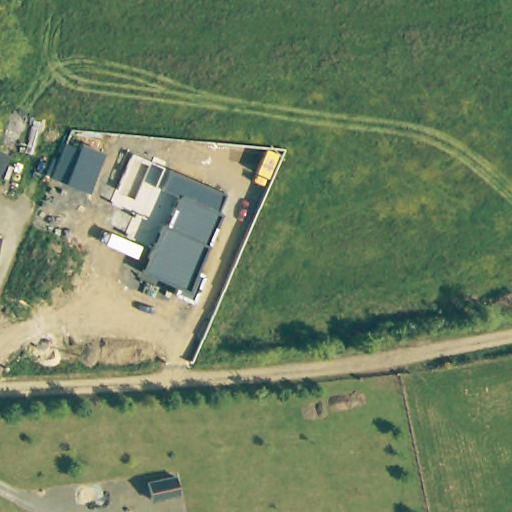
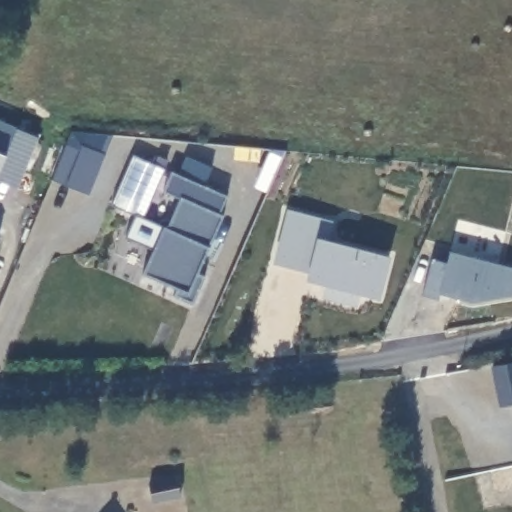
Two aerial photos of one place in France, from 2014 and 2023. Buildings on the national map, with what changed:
unchanged [(66,183),(54,177),(70,142),(82,147),(105,157),(90,194),(66,183)]
unchanged [(11,156),(0,179),(0,150),(11,156)]
unchanged [(175,297),(179,288),(145,272),(178,198),(165,192),(172,174),(229,197),(224,214),(199,272),(205,275),(192,303),(175,297)]
new [(328,239),(391,256),(381,298),(361,293),(357,306),(322,297),(325,285),(306,280),(308,272),(273,263),(287,209),(333,221),(328,239)]
unchanged [(1,237),(0,240),(0,237),(1,237)]
new [(447,262),(451,250),(512,270),(512,298),(470,302),(439,291),(437,297),(421,292),(433,257),(447,262)]
new [(512,403),(500,406),(491,365),(512,361),(512,403)]
new [(179,477),(183,493),(155,501),(151,483),(179,477)]

